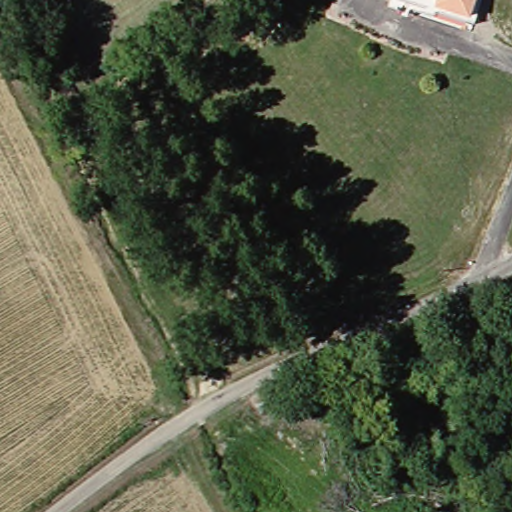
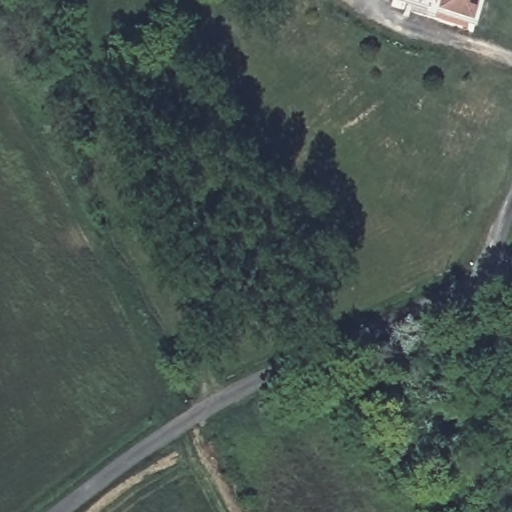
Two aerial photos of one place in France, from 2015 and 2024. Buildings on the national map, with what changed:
unchanged [(461,19),(394,1),(391,0),(474,0),(468,21),(461,19)]

